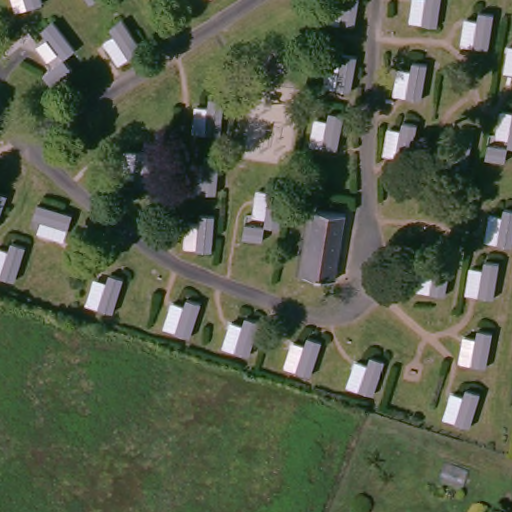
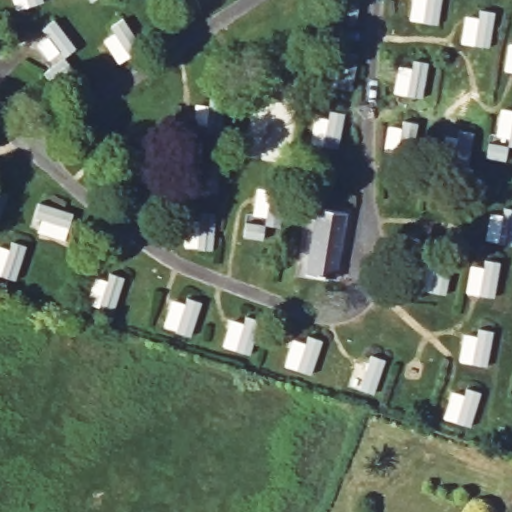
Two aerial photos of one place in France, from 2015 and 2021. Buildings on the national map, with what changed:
unchanged [(345,208),(336,274),(305,269),(315,203),(345,208)]

